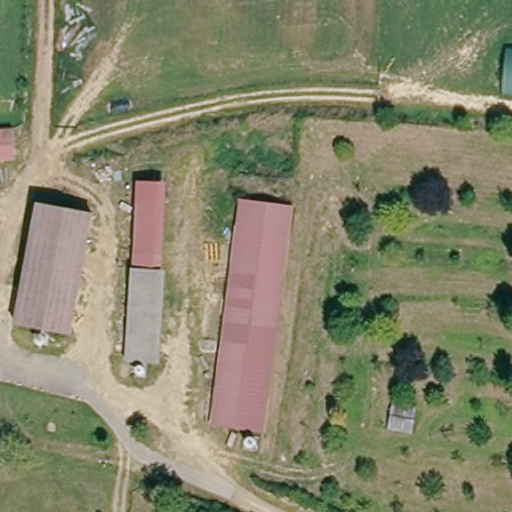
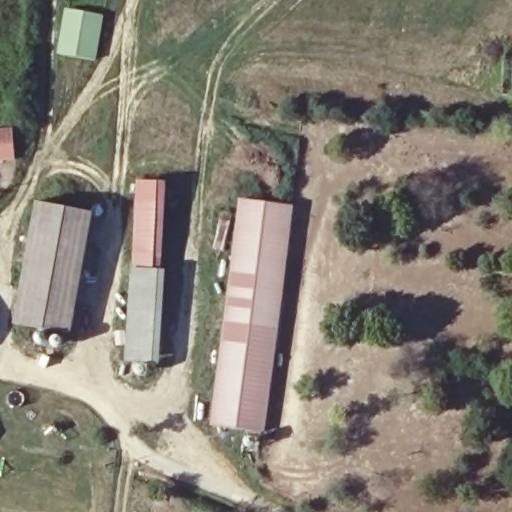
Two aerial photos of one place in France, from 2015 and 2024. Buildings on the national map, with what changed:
new [(64,7),(105,15),(95,62),(54,54),(64,7)]
unchanged [(512,49),(512,94),(502,93),(507,49),(512,49)]
unchanged [(14,160),(0,161),(0,128),(12,127),(14,160)]
unchanged [(160,268),(157,364),(124,362),(131,268),(136,185),(164,182),(160,268)]
unchanged [(265,427),(215,422),(239,205),(287,208),(265,427)]
unchanged [(12,325),(29,207),(86,217),(65,334),(12,325)]

